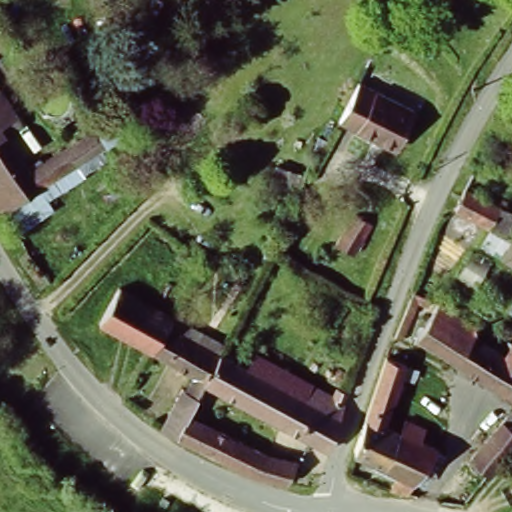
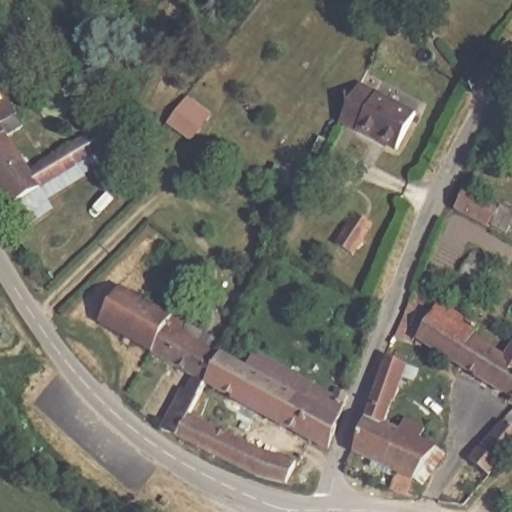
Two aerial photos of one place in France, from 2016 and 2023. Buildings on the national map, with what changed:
unchanged [(360,79),(362,75),(418,104),(398,142),(380,132),(378,135),(341,116),(360,79)]
unchanged [(21,122),(3,134),(25,169),(36,185),(10,202),(0,208),(0,90),(21,122)]
new [(187,137),(171,125),(186,106),(191,100),(215,117),(210,123),(195,143),(187,137)]
unchanged [(95,124),(106,139),(36,185),(25,169),(95,124)]
unchanged [(512,148),(512,161),(507,170),(493,162),(504,144),(512,148)]
unchanged [(490,231),(485,228),(456,212),(468,190),(502,209),(512,215),(512,226),(505,239),(490,231)]
unchanged [(369,223),(355,246),(350,254),(332,243),(352,213),(369,223)]
unchanged [(93,331),(113,294),(168,323),(147,360),(93,331)]
unchanged [(484,387),(414,338),(438,305),(455,317),(476,332),(471,339),(488,352),(498,358),(503,362),(484,387)]
unchanged [(170,319),(201,336),(194,349),(216,361),(201,389),(185,419),(172,443),(155,432),(176,392),(183,396),(190,383),(147,360),(168,323),(170,319)]
unchanged [(462,462),(510,405),(484,387),(503,362),(503,361),(512,349),(512,444),(480,478),(462,462)]
unchanged [(385,358),(406,367),(394,402),(390,400),(382,425),(364,418),(385,358)]
unchanged [(239,373),(240,371),(257,380),(263,367),(317,395),(294,439),(201,389),(216,361),(239,373)]
unchanged [(336,424),(325,456),(294,439),(317,395),(330,402),(333,397),(343,401),(336,424)]
unchanged [(352,453),(352,452),(364,418),(382,425),(403,434),(402,436),(389,470),(352,453)]
unchanged [(283,490),(250,481),(172,443),(185,419),(262,459),(294,466),(283,490)]
unchanged [(390,489),(396,472),(389,470),(402,436),(403,434),(435,447),(413,479),(406,496),(392,490),(390,489)]

